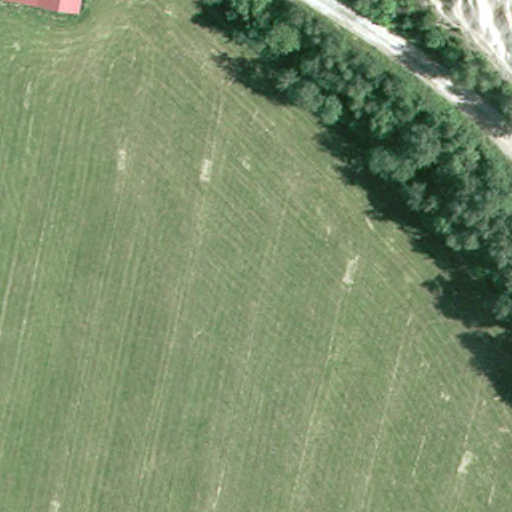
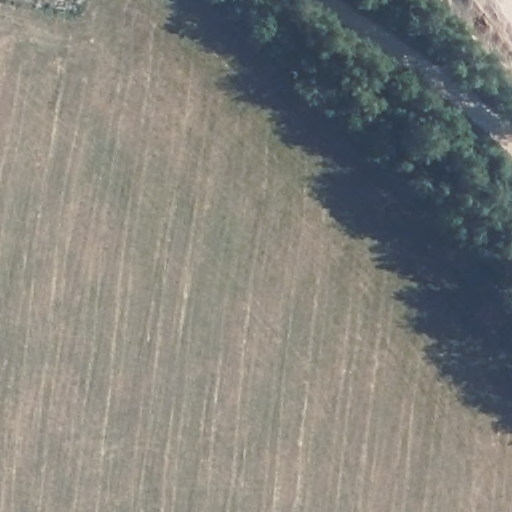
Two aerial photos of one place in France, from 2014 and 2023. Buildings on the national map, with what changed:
unchanged [(32,0),(79,0),(78,8),(32,0)]

